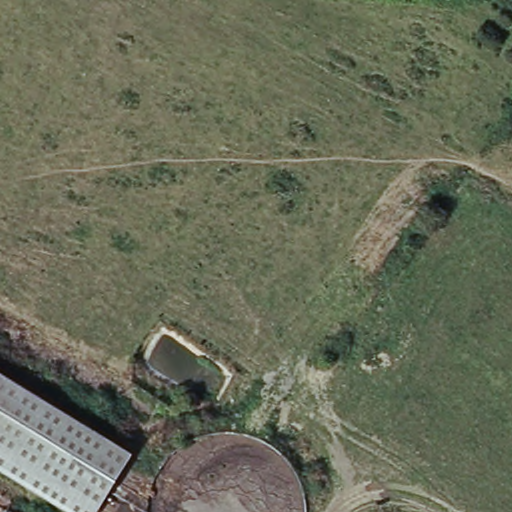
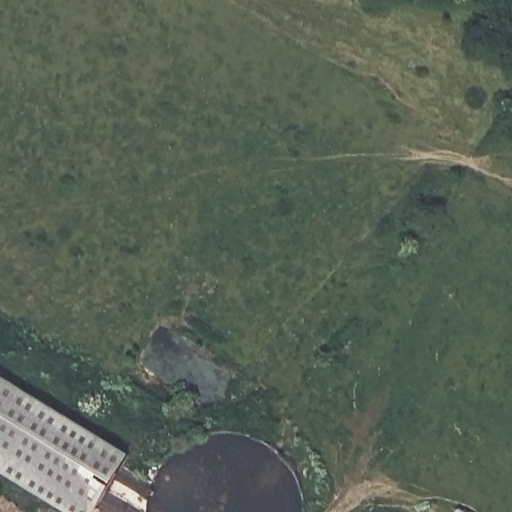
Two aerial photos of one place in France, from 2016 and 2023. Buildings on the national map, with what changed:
unchanged [(94,512),(69,512),(0,469),(0,377),(130,457),(94,512)]

